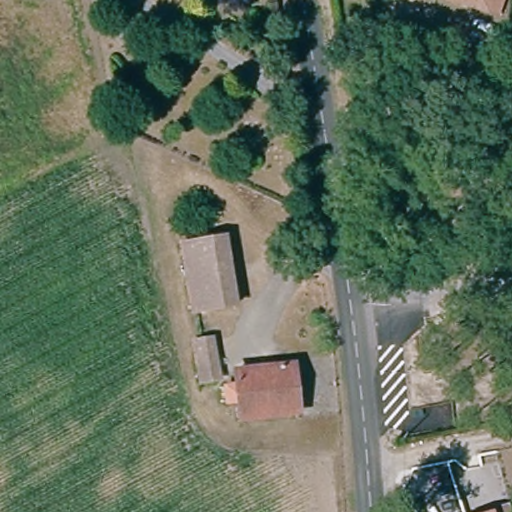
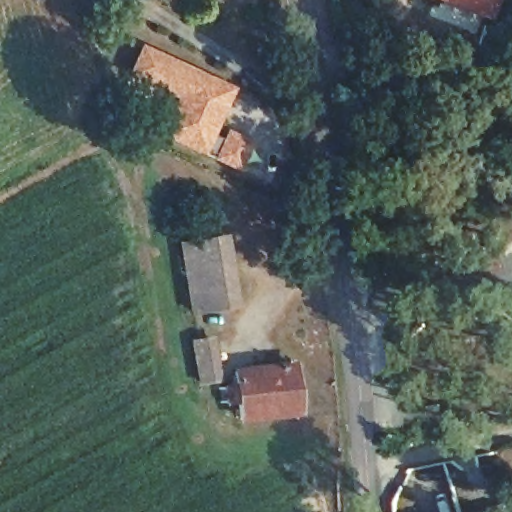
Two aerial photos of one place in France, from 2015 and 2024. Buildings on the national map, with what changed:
unchanged [(448,0),(499,0),(489,19),(448,0)]
new [(140,43),(236,86),(204,156),(159,136),(174,98),(125,73),(140,43)]
new [(226,127),(257,141),(244,172),(211,159),(226,127)]
unchanged [(195,311),(184,245),(228,237),(231,257),(235,276),(240,303),(195,311)]
unchanged [(209,334),(225,333),(230,373),(226,374),(215,374),(209,335),(209,334)]
unchanged [(253,399),(240,399),(240,384),(251,383),(250,369),(307,364),(310,411),(255,414),(253,399)]
unchanged [(512,505),(512,512),(478,512),(511,502),(512,505)]

